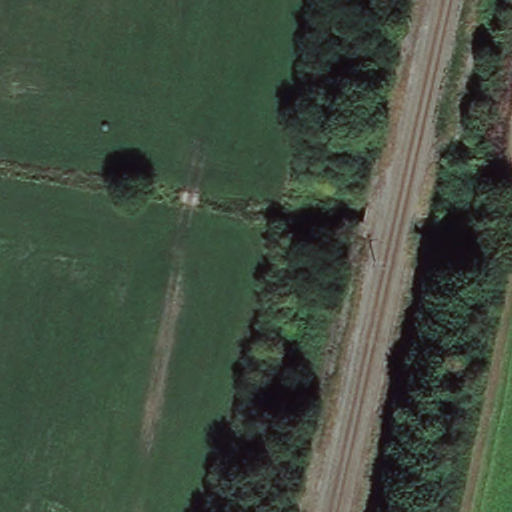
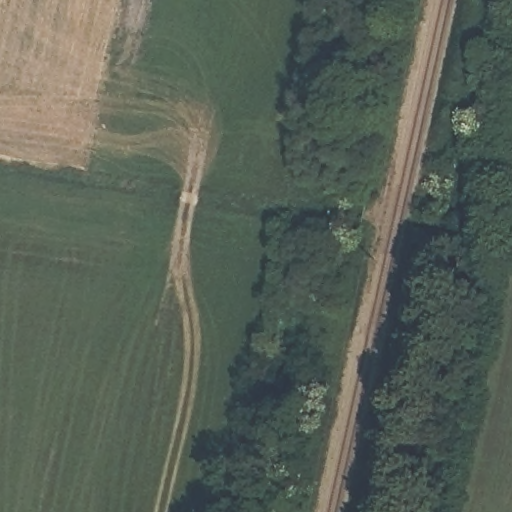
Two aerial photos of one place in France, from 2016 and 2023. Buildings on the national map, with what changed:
unchanged [(306,158),(332,161),(327,187),(302,183),(306,158)]

